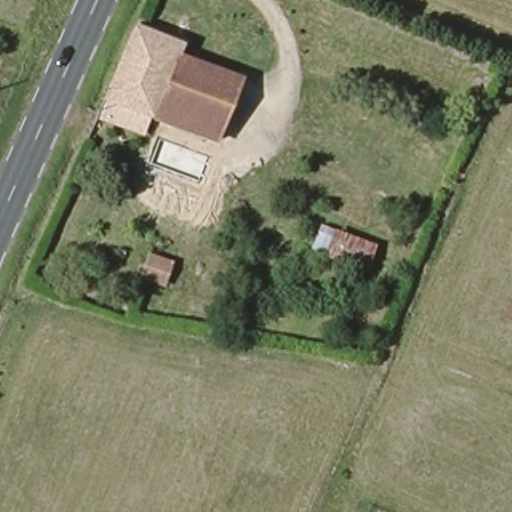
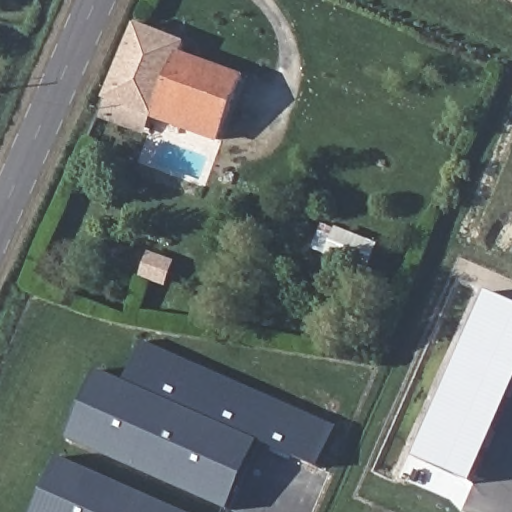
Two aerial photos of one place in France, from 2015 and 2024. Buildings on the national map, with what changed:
unchanged [(136,27),(149,32),(182,46),(179,54),(240,79),(216,139),(105,97),(136,27)]
demolished [(145,167),(150,156),(220,184),(205,223),(145,200),(155,174),(145,167)]
unchanged [(332,232),(325,257),(312,252),(320,229),(332,232)]
unchanged [(375,251),(365,273),(327,257),(337,236),(375,251)]
unchanged [(181,249),(170,284),(150,277),(160,242),(181,249)]
demolished [(352,322),(340,353),(230,312),(240,281),(352,322)]
new [(512,417),(481,487),(423,462),(497,296),(512,302),(512,417)]
new [(145,340),(337,427),(319,468),(262,445),(125,385),(145,340)]
new [(99,373),(262,445),(233,512),(226,512),(68,442),(99,373)]
new [(59,458),(182,512),(35,512),(59,458)]

